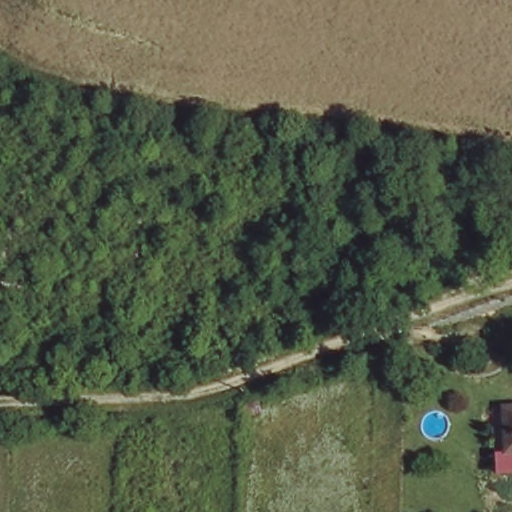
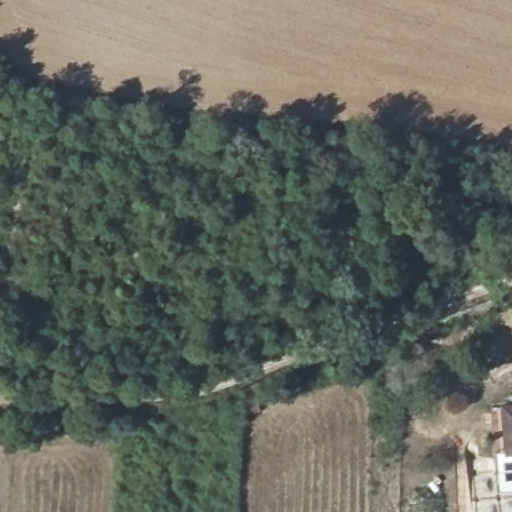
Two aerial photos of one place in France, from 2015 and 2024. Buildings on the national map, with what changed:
unchanged [(512,411),(512,452),(497,453),(498,412),(512,411)]

